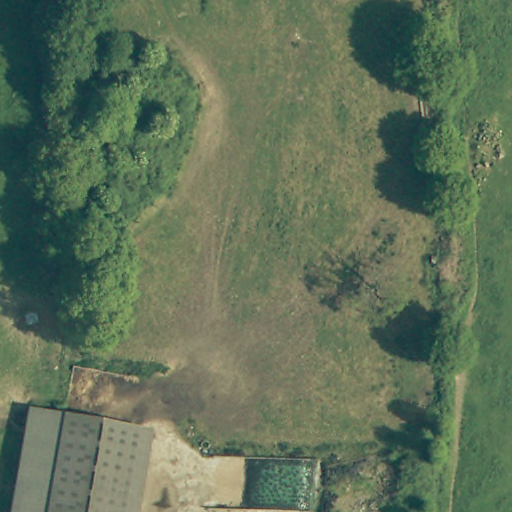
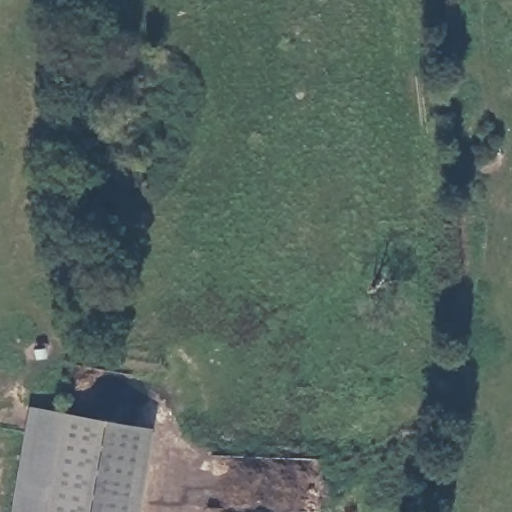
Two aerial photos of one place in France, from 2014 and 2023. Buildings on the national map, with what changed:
unchanged [(18,512),(35,411),(89,420),(151,431),(137,512),(18,512)]

